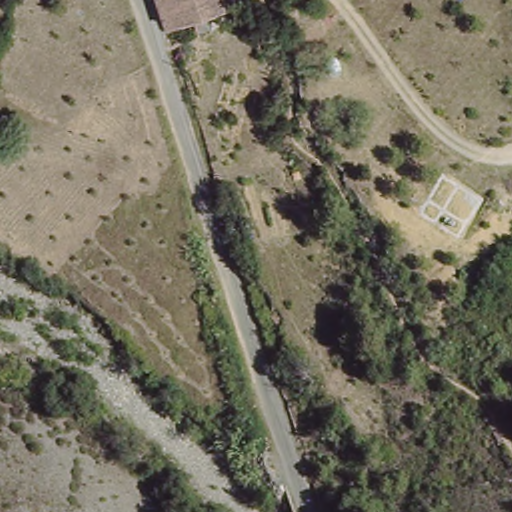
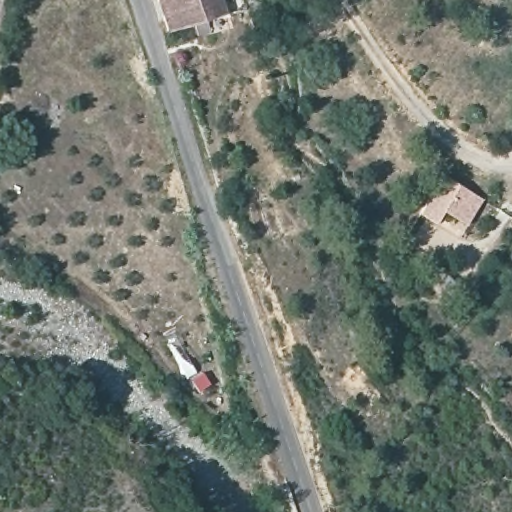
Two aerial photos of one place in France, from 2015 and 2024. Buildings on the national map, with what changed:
unchanged [(218,0),(222,12),(175,31),(162,0),(218,0)]
new [(457,237),(418,212),(442,173),(483,199),(457,237)]

